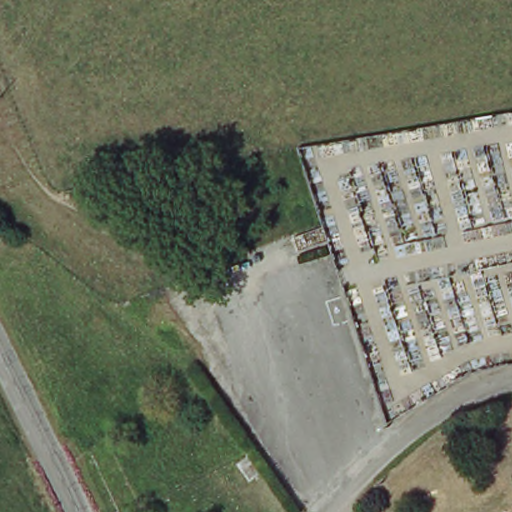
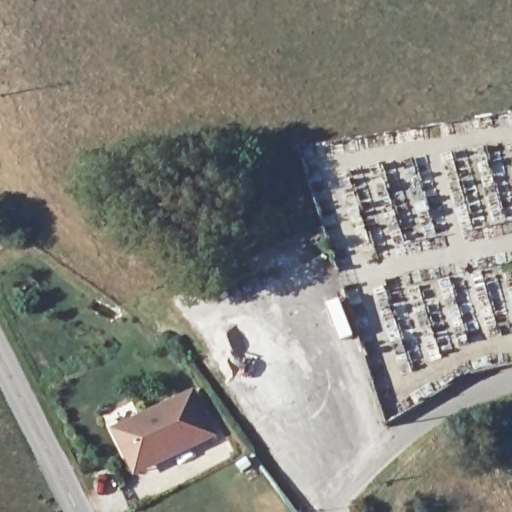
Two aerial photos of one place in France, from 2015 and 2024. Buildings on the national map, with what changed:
new [(133,476),(110,428),(192,387),(217,435),(133,476)]
unchanged [(251,480),(240,465),(250,456),(262,471),(251,480)]

